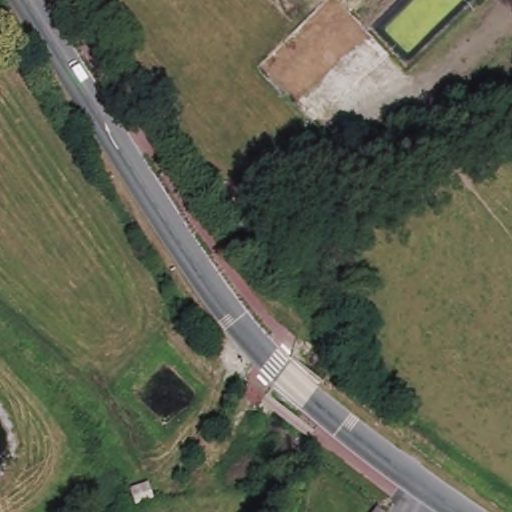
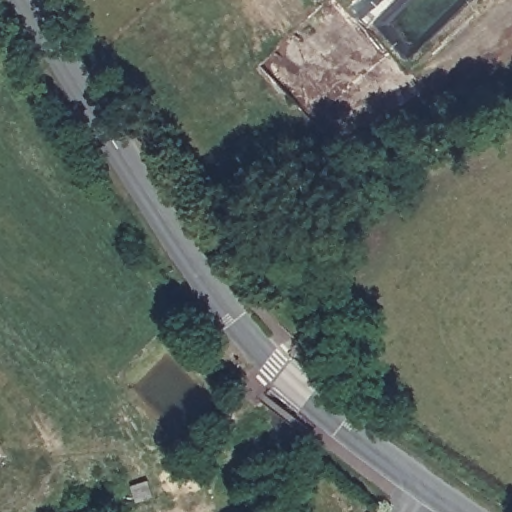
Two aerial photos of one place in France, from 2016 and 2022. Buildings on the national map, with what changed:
unchanged [(133,489),(131,481),(140,478),(143,487),(133,489)]
unchanged [(376,507),(382,512),(373,512),(376,507)]

